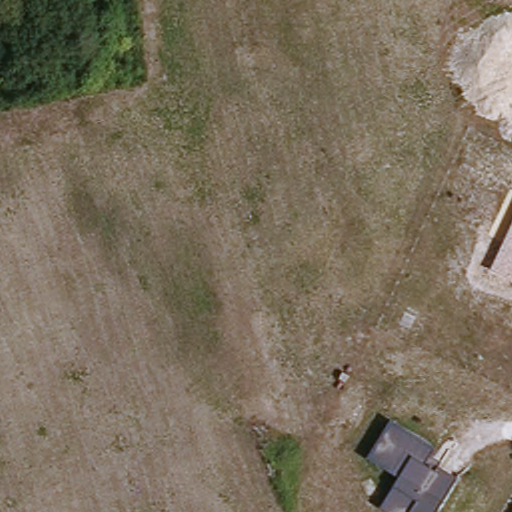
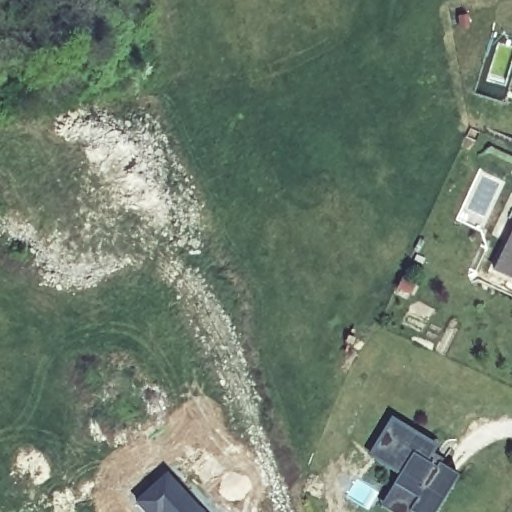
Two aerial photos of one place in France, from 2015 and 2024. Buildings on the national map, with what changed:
unchanged [(493,270),(512,227),(512,278),(493,270)]
unchanged [(439,446),(434,455),(444,460),(441,466),(461,477),(441,512),(395,512),(384,506),(402,477),(370,457),(393,419),(439,446)]
new [(172,475),(206,512),(152,512),(143,502),(172,475)]

